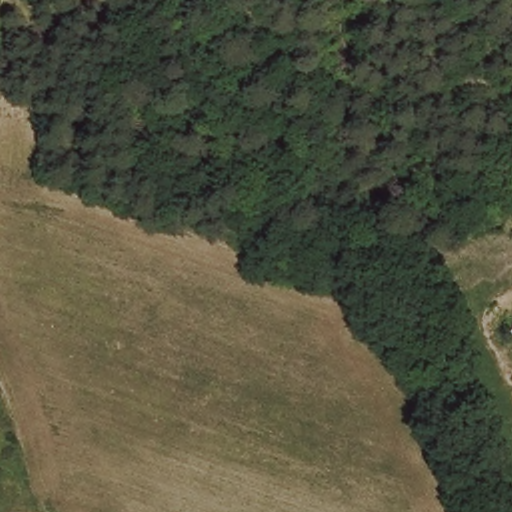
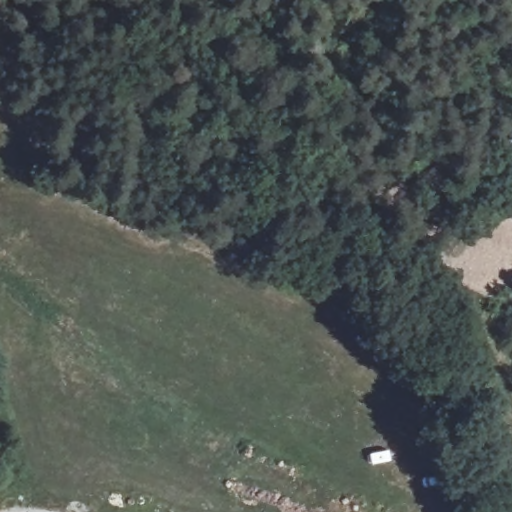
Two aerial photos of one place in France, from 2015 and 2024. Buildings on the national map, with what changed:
[]

